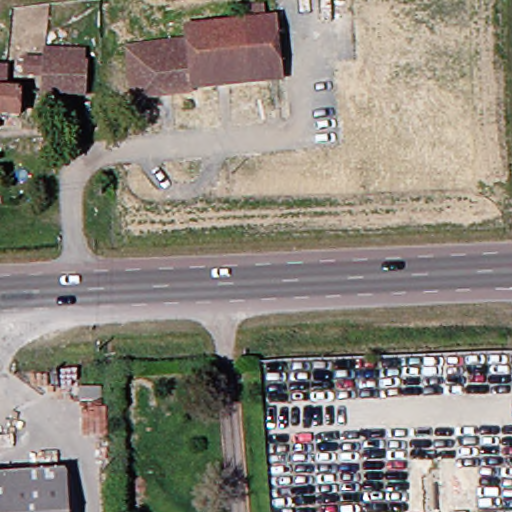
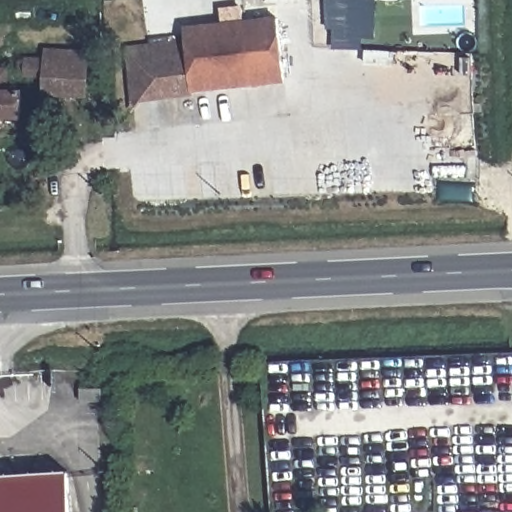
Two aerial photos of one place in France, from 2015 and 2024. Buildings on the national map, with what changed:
new [(362,38),(361,50),(332,50),(333,30),(326,30),(325,0),(376,0),(376,39),(362,38)]
unchanged [(125,96),(120,50),(182,43),(181,29),(236,24),(234,11),(257,8),(258,21),(271,20),(277,80),(244,84),(244,85),(185,91),(139,95),(127,109),(125,96)]
unchanged [(80,97),(38,94),(39,75),(14,74),(15,61),(40,63),(40,61),(41,51),(81,54),(81,64),(82,64),(80,97)]
unchanged [(10,118),(0,117),(0,93),(11,93),(10,118)]
unchanged [(101,401),(80,402),(80,390),(101,389),(101,401)]
unchanged [(63,473),(66,512),(0,512),(0,477),(63,473)]

